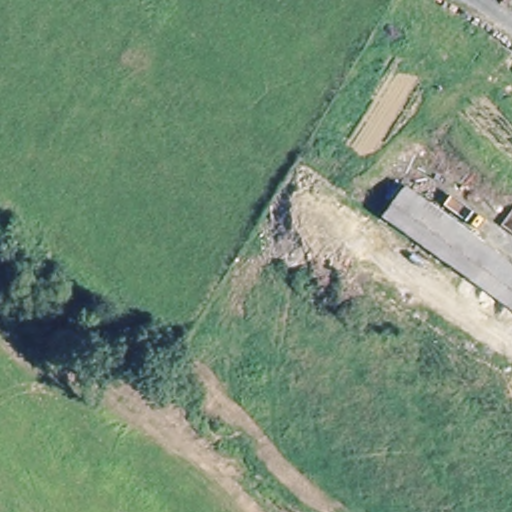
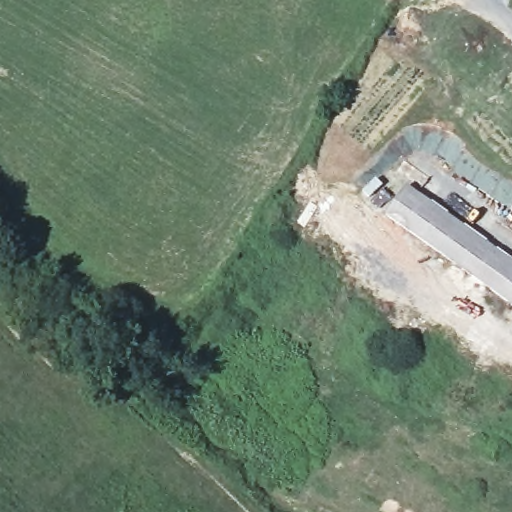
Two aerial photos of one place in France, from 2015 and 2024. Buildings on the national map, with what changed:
unchanged [(405,189),(512,265),(512,312),(384,219),(405,189)]

